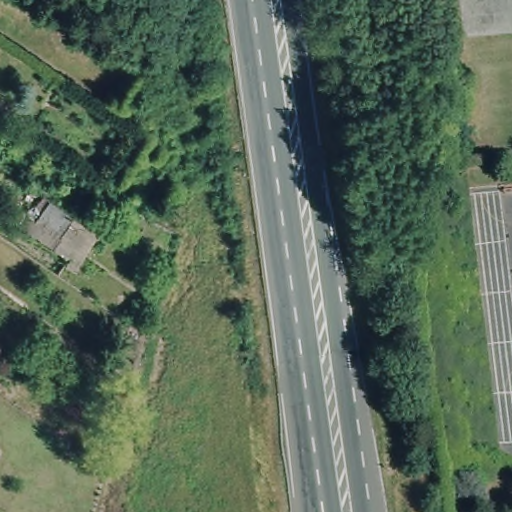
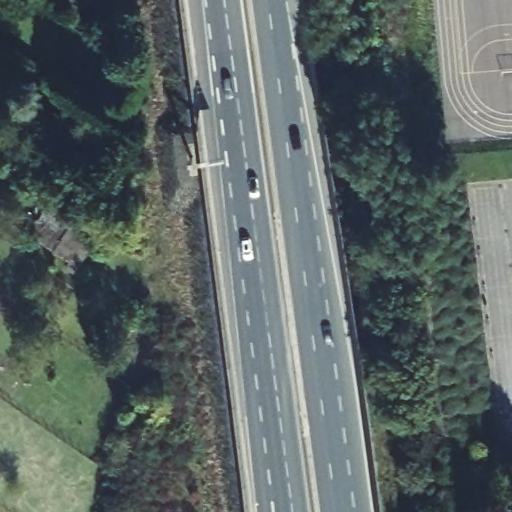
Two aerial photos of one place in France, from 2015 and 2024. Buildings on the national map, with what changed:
unchanged [(98,233),(79,263),(22,233),(52,201),(98,233)]

